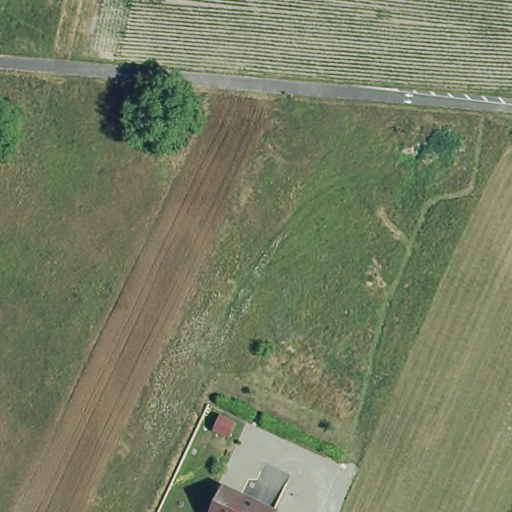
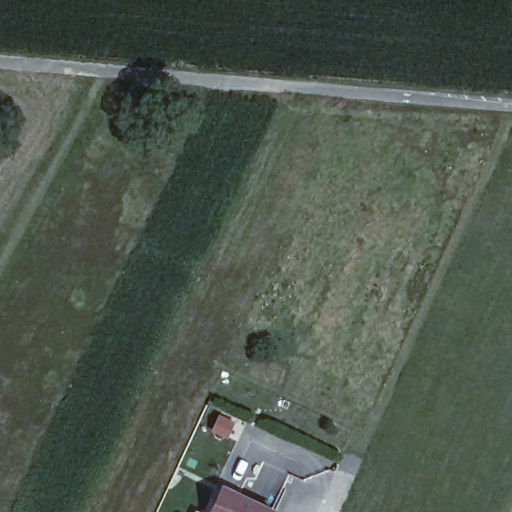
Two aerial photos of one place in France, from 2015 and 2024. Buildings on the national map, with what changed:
unchanged [(205,511),(207,504),(217,482),(270,504),(266,512),(208,512),(205,511)]

